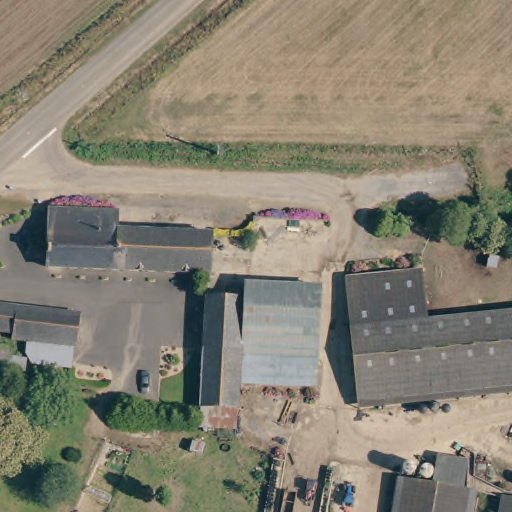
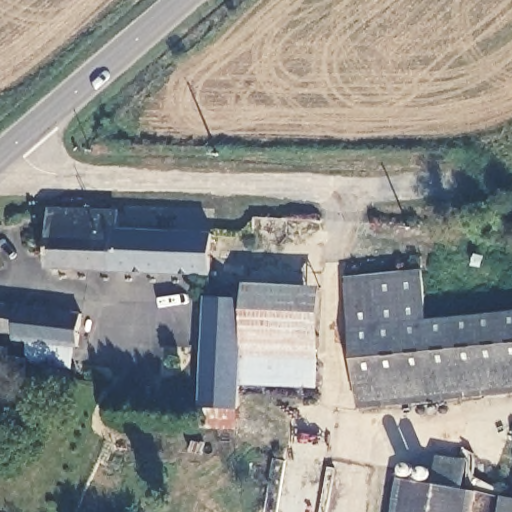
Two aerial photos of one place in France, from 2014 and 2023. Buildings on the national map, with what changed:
unchanged [(55,208),(117,212),(116,226),(219,239),(215,281),(51,265),(55,208)]
unchanged [(347,277),(391,273),(423,270),(428,321),(382,326),(352,328),(347,277)]
unchanged [(242,323),(242,298),(246,298),(247,284),(322,287),(317,384),(239,381),(242,323)]
unchanged [(199,426),(200,406),(202,348),(204,297),(242,298),(242,323),(239,381),(239,405),(239,408),(238,427),(199,426)]
unchanged [(79,317),(74,351),(68,350),(65,369),(27,362),(19,353),(21,343),(7,341),(8,335),(0,333),(0,301),(79,317)]
unchanged [(428,321),(512,312),(512,393),(367,408),(360,408),(352,328),(382,326),(428,321)]
unchanged [(398,512),(404,477),(439,483),(444,455),(473,460),(468,489),(482,491),(478,512),(398,512)]
unchanged [(512,497),(512,512),(499,512),(502,496),(512,497)]

